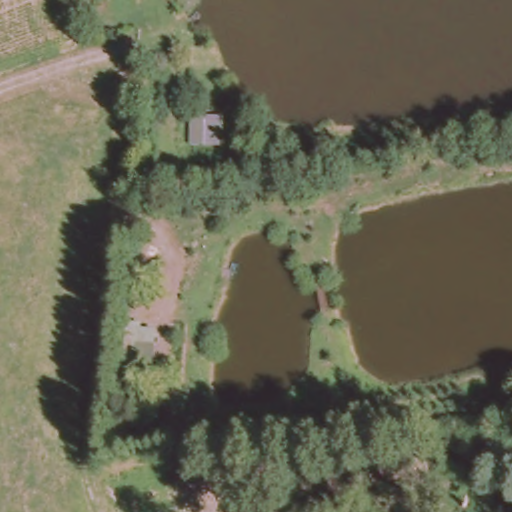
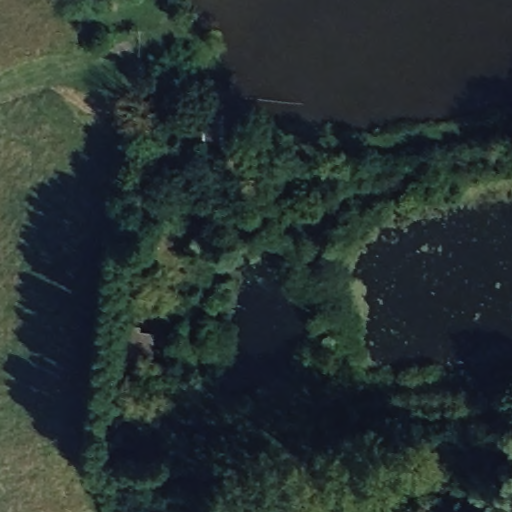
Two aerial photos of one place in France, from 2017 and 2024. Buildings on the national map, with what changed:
unchanged [(126,328),(153,329),(152,341),(150,367),(136,365),(135,371),(122,369),(126,328)]

